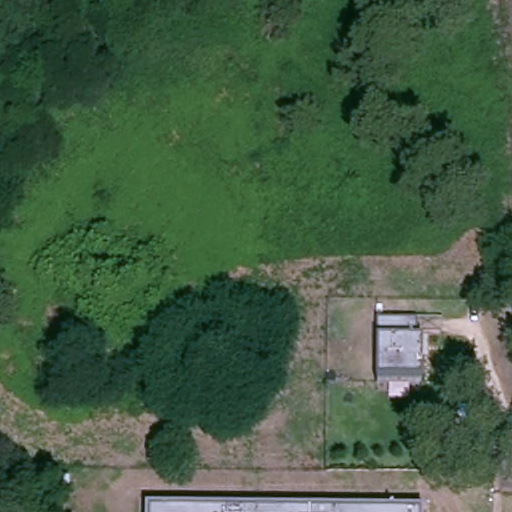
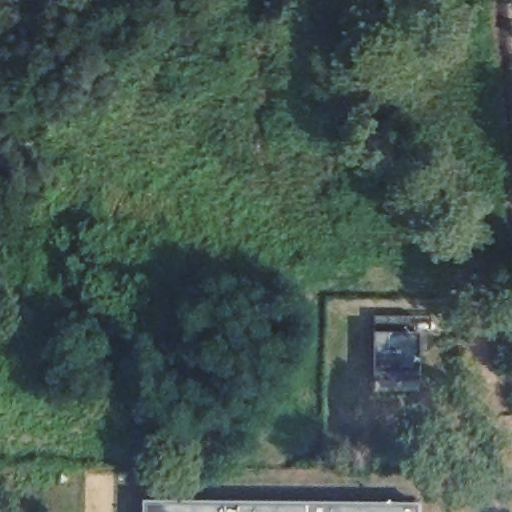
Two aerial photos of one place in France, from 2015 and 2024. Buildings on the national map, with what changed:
unchanged [(378,335),(379,317),(420,317),(419,332),(425,333),(425,377),(378,376),(378,335)]
unchanged [(422,505),(422,512),(149,512),(149,502),(422,505)]

